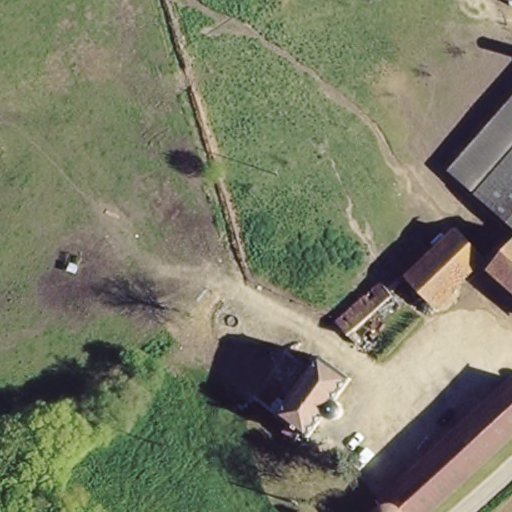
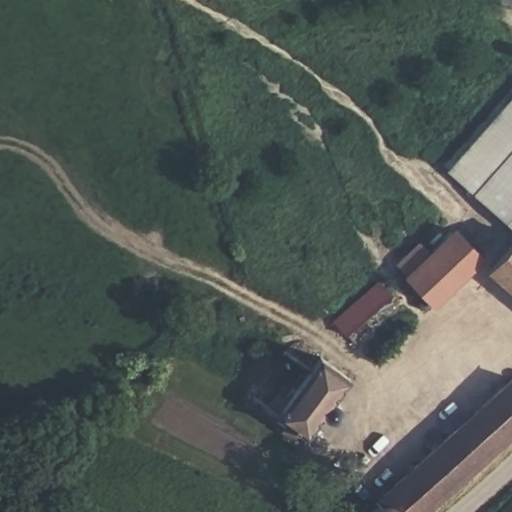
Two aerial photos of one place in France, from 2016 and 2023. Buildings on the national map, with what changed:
unchanged [(505,7),(507,0),(512,0),(512,9),(505,7)]
unchanged [(447,168),(512,96),(512,227),(447,168)]
unchanged [(446,234),(448,232),(473,260),(427,302),(402,273),(389,259),(410,238),(423,247),(427,250),(444,236),(446,234)]
unchanged [(490,268),(512,243),(512,289),(490,268)]
unchanged [(332,317),(378,278),(389,290),(342,331),(332,317)]
unchanged [(260,423),(270,411),(246,385),(271,360),(274,357),(285,346),(300,363),(315,348),(344,378),(329,393),(343,408),(320,428),(307,414),(279,442),(260,423)]
unchanged [(438,512),(404,512),(382,495),(512,387),(512,442),(464,488),(438,512)]
unchanged [(401,512),(378,512),(389,508),(401,512)]

